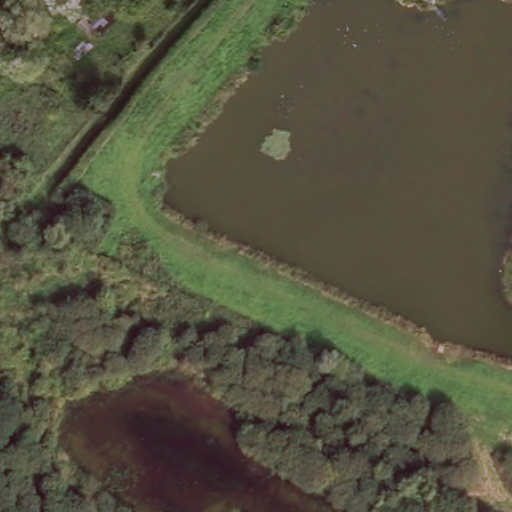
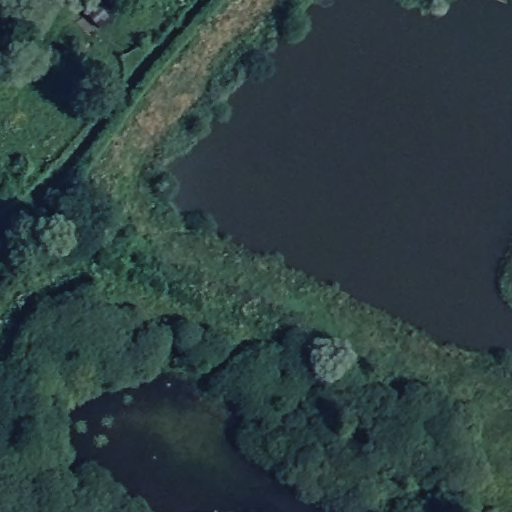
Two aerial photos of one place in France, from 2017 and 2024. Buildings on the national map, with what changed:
unchanged [(424,0),(428,0),(427,1),(424,0)]

